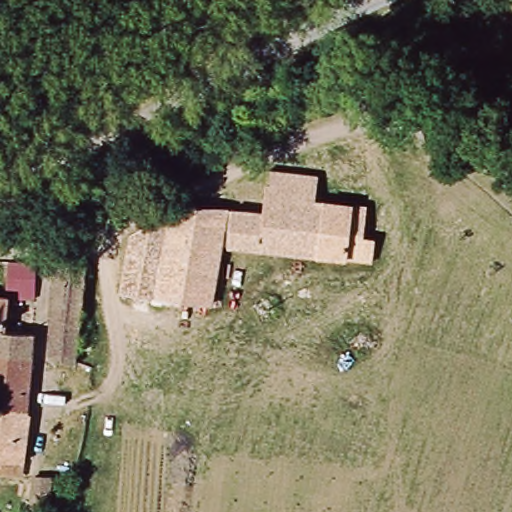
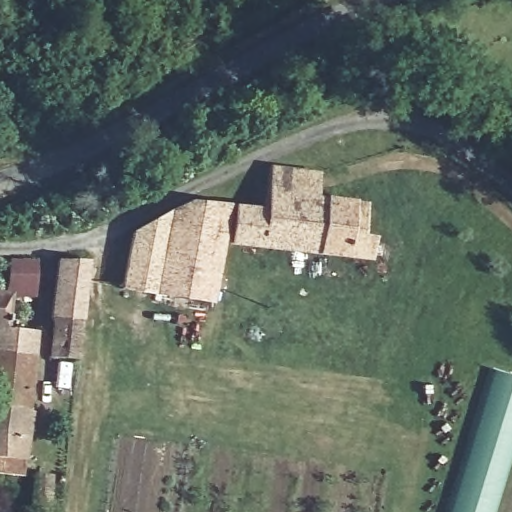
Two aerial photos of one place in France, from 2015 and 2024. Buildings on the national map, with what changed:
unchanged [(363,204),(360,237),(371,238),(368,261),(216,244),(208,303),(121,291),(129,234),(187,203),(257,210),(261,170),(314,174),(312,200),(363,204)]
unchanged [(3,292),(5,258),(31,259),(29,297),(18,297),(17,311),(2,312),(3,292)]
unchanged [(46,360),(50,321),(47,316),(52,259),(83,261),(77,314),(72,360),(46,360)]
unchanged [(2,312),(1,329),(0,329),(0,292),(3,292),(2,312)]
unchanged [(0,453),(0,329),(1,329),(28,330),(23,437),(18,455),(0,453)]
new [(447,509),(461,461),(485,386),(479,384),(483,367),(512,375),(512,460),(496,512),(447,512),(447,509)]
unchanged [(44,474),(43,504),(28,503),(30,473),(44,474)]

